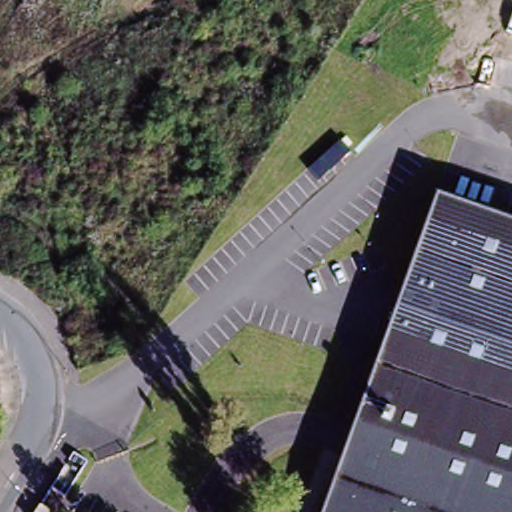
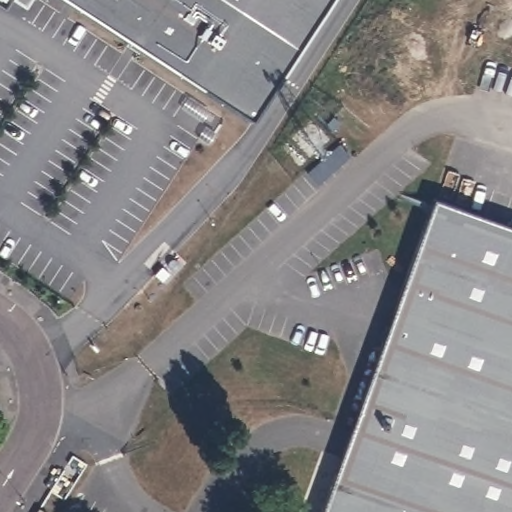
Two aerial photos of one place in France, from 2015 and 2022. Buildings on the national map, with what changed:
new [(28,9),(14,0),(34,0),(28,9)]
new [(252,121),(70,0),(331,0),(252,121)]
unchanged [(318,512),(427,205),(442,210),(447,199),(458,203),(454,215),(457,216),(512,236),(512,512),(318,512)]

